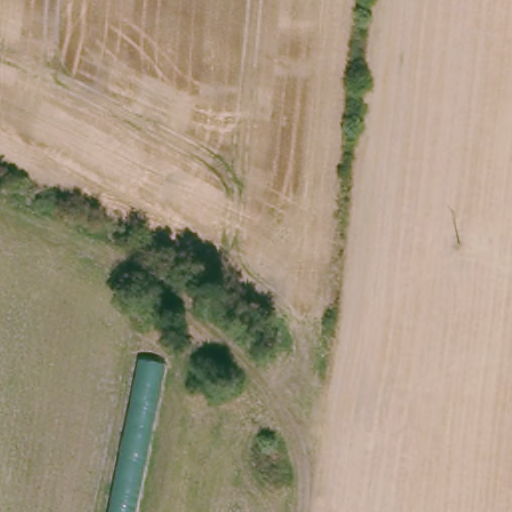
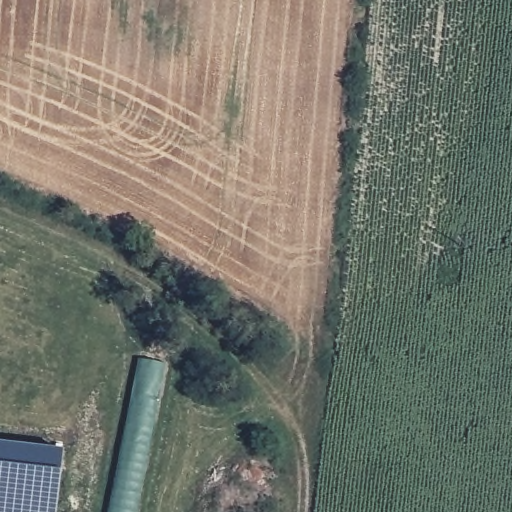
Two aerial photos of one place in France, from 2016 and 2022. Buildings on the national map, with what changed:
unchanged [(141,512),(112,512),(143,355),(171,361),(141,512)]
new [(57,512),(0,512),(0,438),(69,452),(57,512)]

